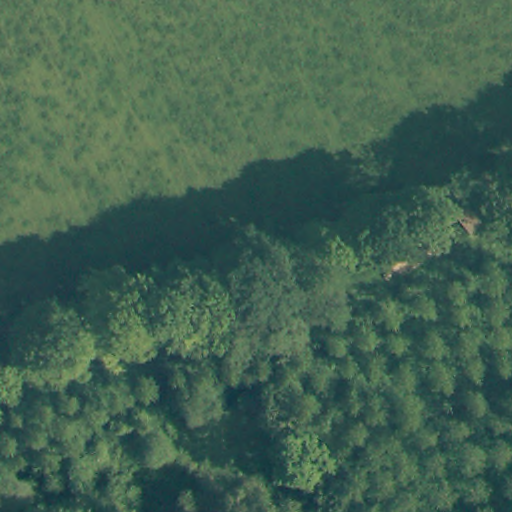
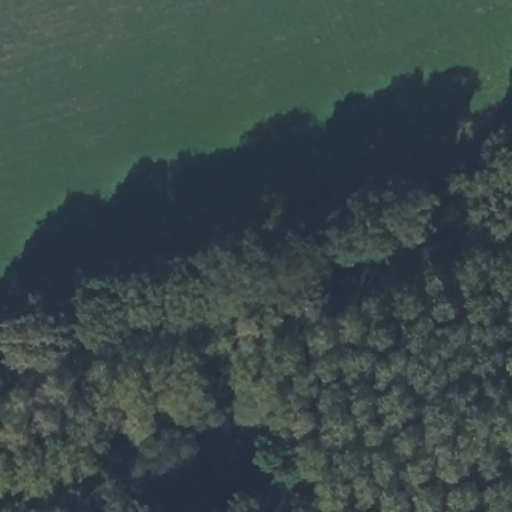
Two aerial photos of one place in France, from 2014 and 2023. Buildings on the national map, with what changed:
[]

